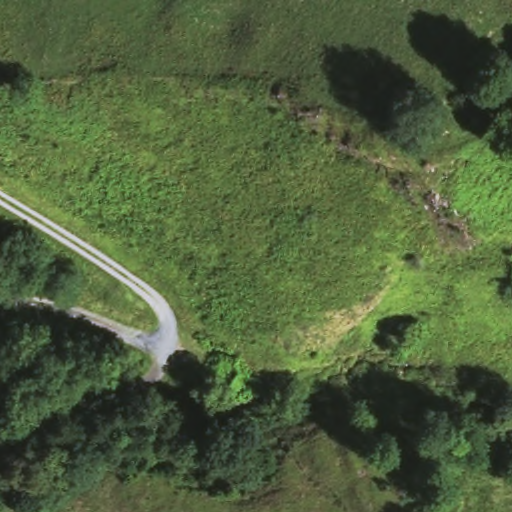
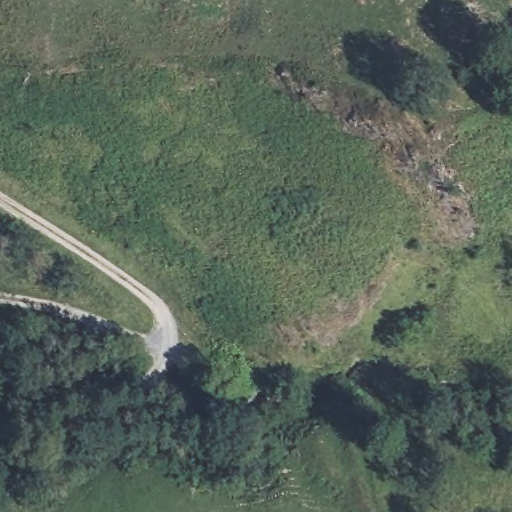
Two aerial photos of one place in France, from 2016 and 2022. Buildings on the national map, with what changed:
[]

